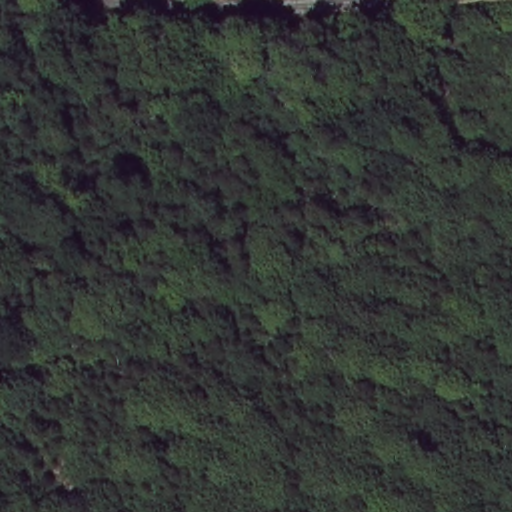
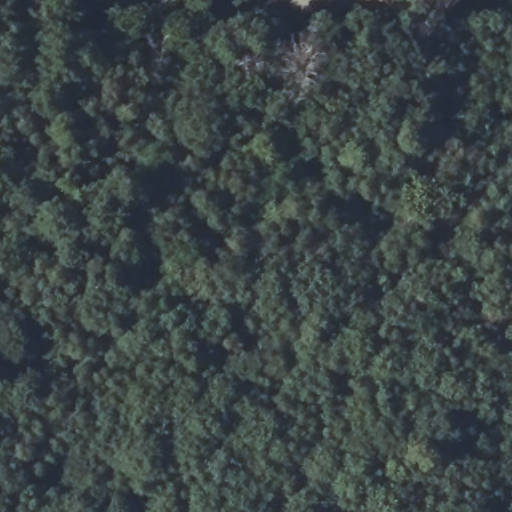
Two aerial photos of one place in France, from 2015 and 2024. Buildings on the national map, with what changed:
[]

